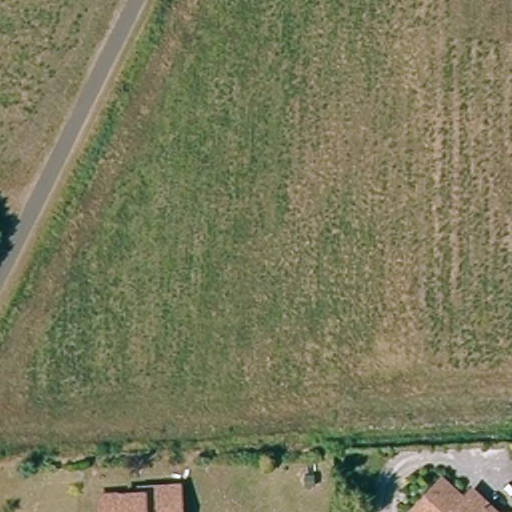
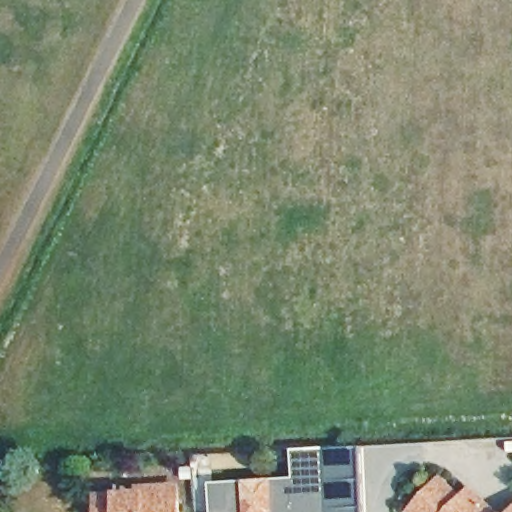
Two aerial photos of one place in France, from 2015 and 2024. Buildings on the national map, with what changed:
new [(212,485),(327,478),(327,449),(362,447),(364,512),(213,512),(212,485)]
unchanged [(89,487),(131,485),(131,480),(149,479),(170,479),(171,494),(171,512),(90,512),(89,487)]
unchanged [(410,511),(438,481),(460,500),(468,491),(484,503),(492,512),(411,512),(410,511)]

